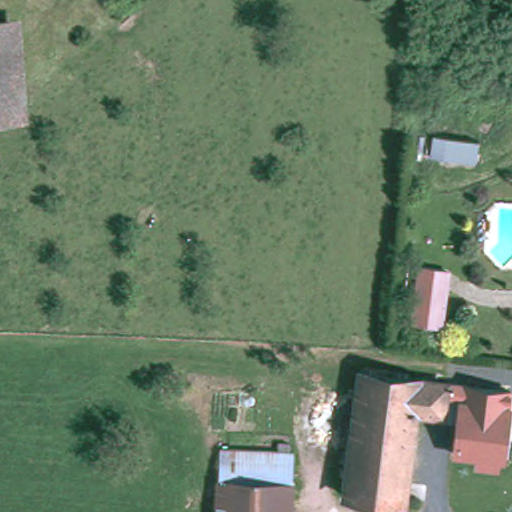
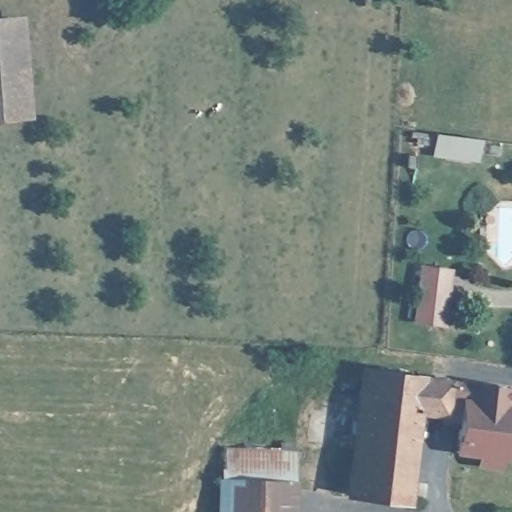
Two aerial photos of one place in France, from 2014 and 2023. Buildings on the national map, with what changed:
unchanged [(0,21),(20,20),(26,120),(0,122),(0,21)]
unchanged [(445,151),(448,136),(477,140),(475,155),(445,151)]
unchanged [(421,329),(424,276),(452,277),(465,278),(465,296),(462,332),(421,329)]
unchanged [(353,496),(370,373),(454,384),(452,397),(450,409),(448,411),(445,414),(442,415),(438,416),(435,416),(432,415),(418,414),(407,504),(353,496)]
unchanged [(454,384),(512,392),(512,428),(507,460),(503,460),(503,462),(501,464),(500,466),(497,468),(494,468),(491,468),(488,467),(486,465),(485,463),(483,460),(483,457),(460,454),(468,400),(452,397),(454,384)]
unchanged [(223,452),(295,455),(292,512),(220,512),(223,452)]

